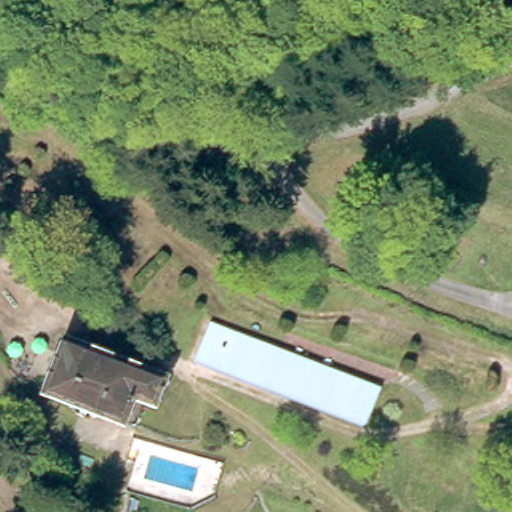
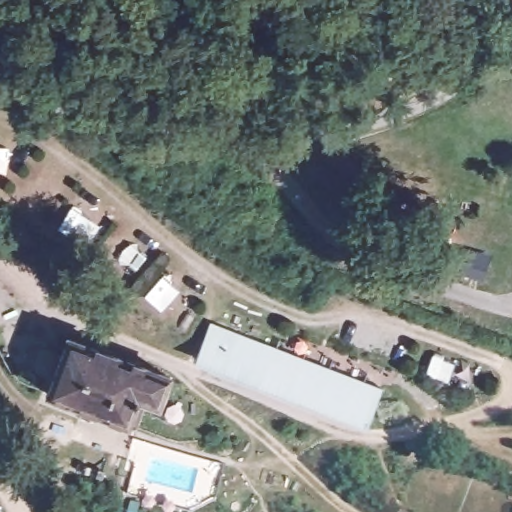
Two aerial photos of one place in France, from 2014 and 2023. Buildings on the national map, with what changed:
unchanged [(208,368),(222,328),(369,379),(356,421),(208,368)]
unchanged [(149,397),(139,421),(118,413),(89,410),(73,397),(53,390),(61,368),(55,366),(62,349),(67,351),(73,335),(173,372),(163,402),(149,397)]

